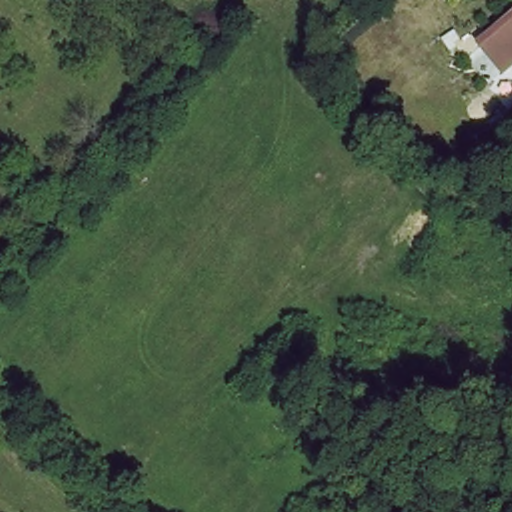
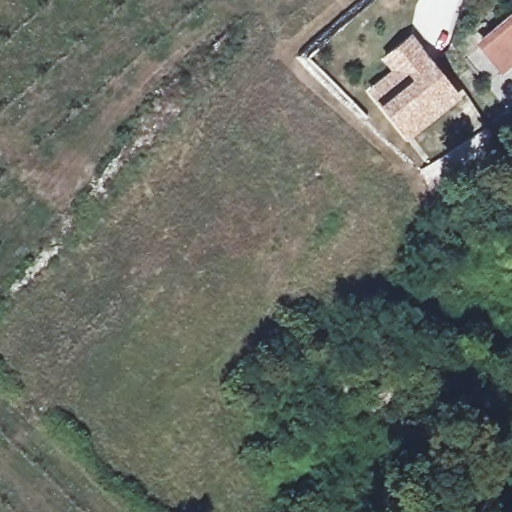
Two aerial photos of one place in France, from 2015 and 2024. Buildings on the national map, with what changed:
unchanged [(502,72),(485,44),(512,25),(512,66),(502,72)]
new [(391,69),(380,55),(410,32),(461,97),(407,141),(365,88),(391,69)]

